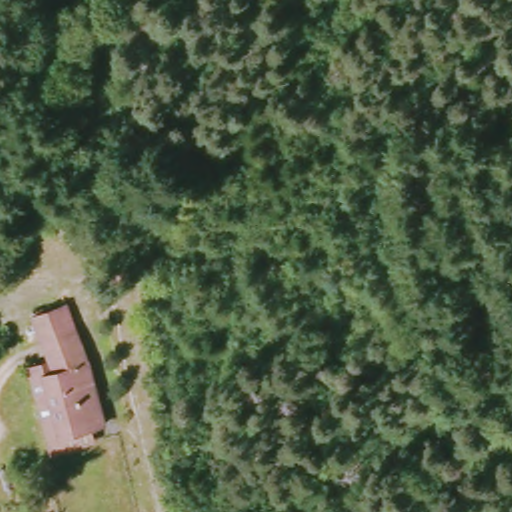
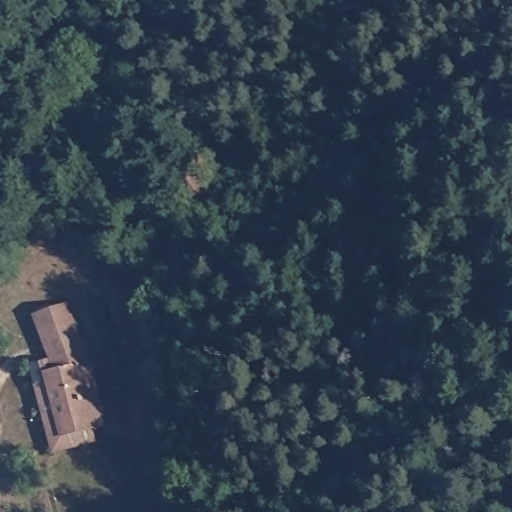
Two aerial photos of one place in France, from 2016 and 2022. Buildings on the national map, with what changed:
unchanged [(106,421),(66,435),(41,363),(50,360),(33,314),(65,302),(106,421)]
unchanged [(112,434),(58,454),(28,369),(41,363),(66,435),(106,421),(112,434)]

